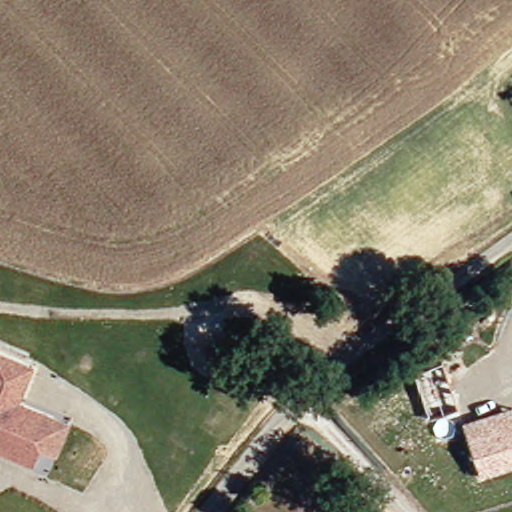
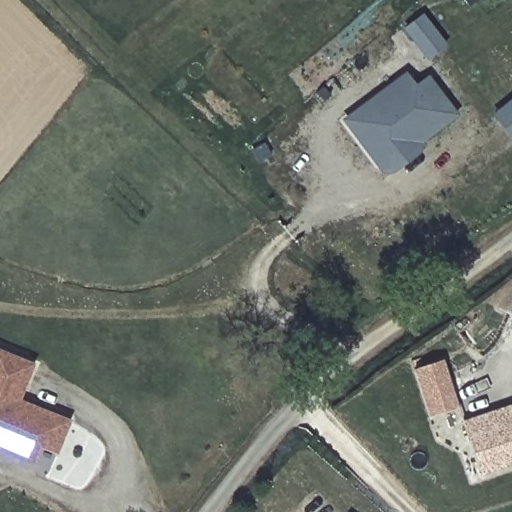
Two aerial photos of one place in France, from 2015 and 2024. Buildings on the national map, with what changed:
new [(395,171),(385,170),(381,165),(346,120),(368,105),(406,75),(417,87),(430,77),(457,114),(421,142),(419,154),(395,171)]
new [(512,100),(512,141),(492,116),(512,100)]
unchanged [(31,368),(17,403),(51,416),(63,422),(67,424),(53,457),(45,454),(37,450),(30,468),(4,456),(0,455),(0,355),(31,368)]
new [(443,360),(459,407),(431,417),(415,370),(443,360)]
unchanged [(464,421),(484,415),(512,405),(512,465),(483,475),(464,421)]

